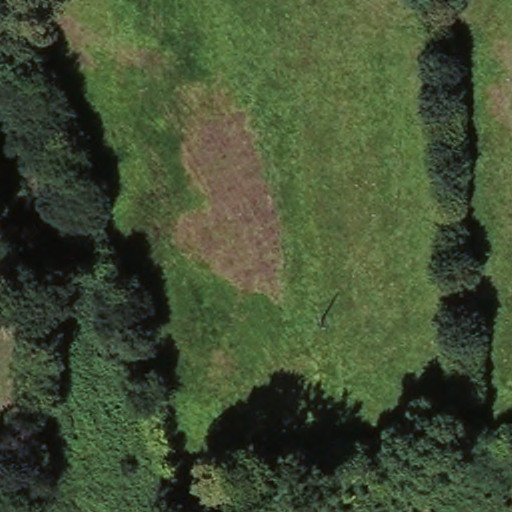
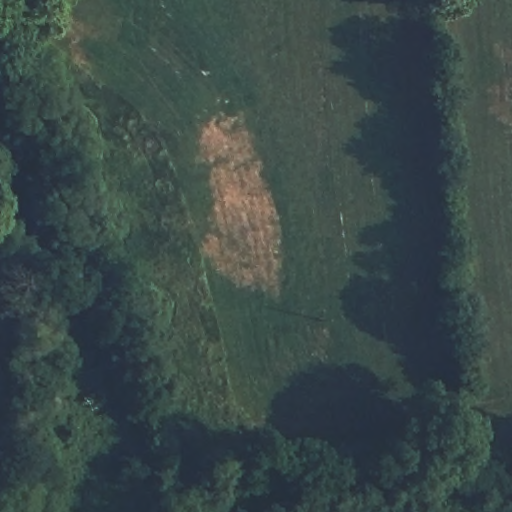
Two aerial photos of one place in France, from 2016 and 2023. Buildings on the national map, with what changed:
[]

